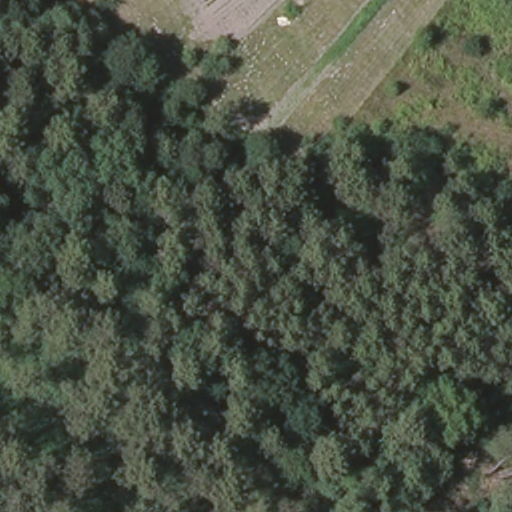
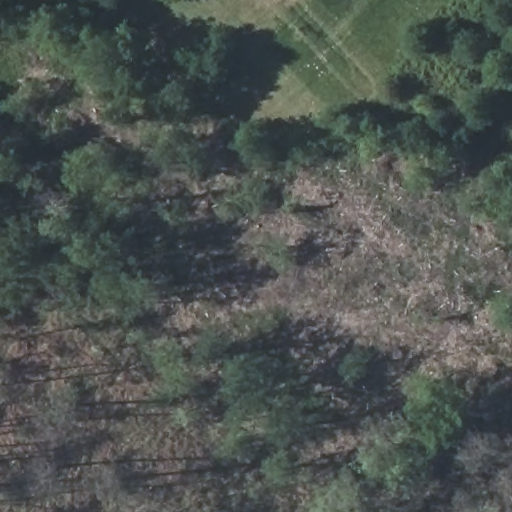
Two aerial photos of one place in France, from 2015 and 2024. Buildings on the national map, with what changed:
[]

